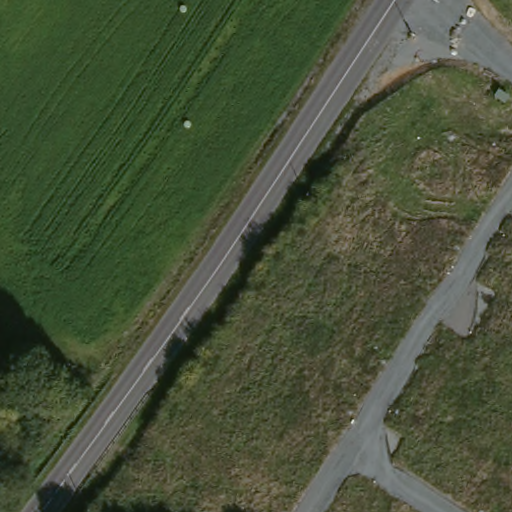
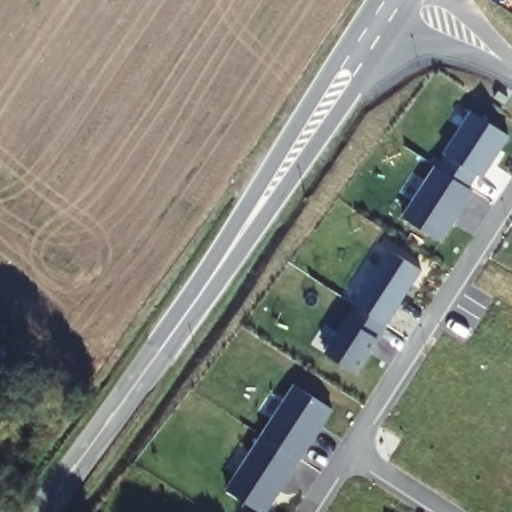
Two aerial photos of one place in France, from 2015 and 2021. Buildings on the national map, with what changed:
new [(446,155),(444,154),(471,112),(508,136),(481,178),(476,174),(467,188),(438,169),(446,155)]
new [(436,167),(438,169),(467,188),(473,191),(440,242),(403,218),(436,167)]
new [(390,251),(423,272),(388,327),(358,308),(355,306),(390,251)]
unchanged [(358,308),(388,327),(357,375),(327,356),(358,308)]
new [(226,489),(294,385),(332,410),(266,512),(259,512),(226,489)]

